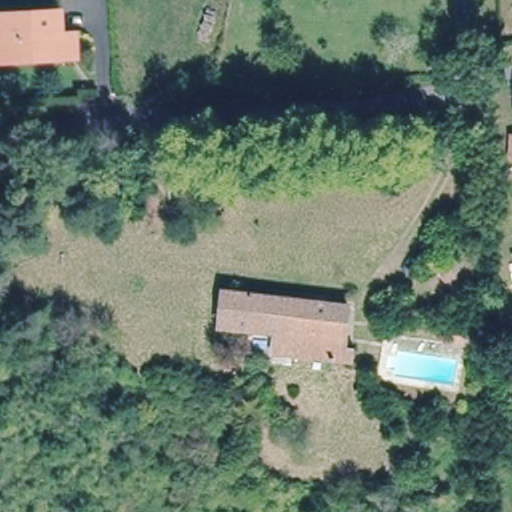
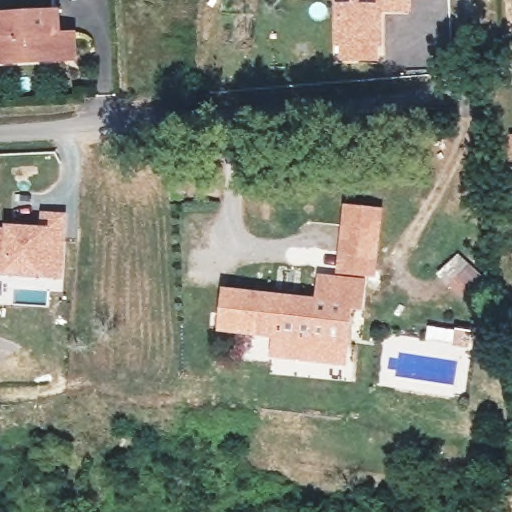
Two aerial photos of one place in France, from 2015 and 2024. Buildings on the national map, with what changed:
unchanged [(413,11),(384,14),(384,46),(335,45),(335,0),(413,0),(413,11)]
unchanged [(0,61),(0,14),(54,12),(55,36),(71,36),(71,59),(56,59),(0,61)]
unchanged [(512,131),(512,154),(511,154),(512,131)]
new [(385,208),(377,279),(337,275),(344,204),(385,208)]
new [(40,227),(41,211),(66,213),(61,279),(46,278),(3,275),(0,274),(0,224),(6,225),(40,227)]
unchanged [(467,267),(448,286),(439,276),(457,257),(467,267)]
new [(366,281),(363,309),(353,308),(348,360),(341,359),(343,345),(347,300),(316,297),(319,273),(366,281)]
unchanged [(276,353),(278,328),(225,323),(228,288),(347,300),(343,345),(341,359),(276,353)]
unchanged [(466,326),(464,340),(452,338),(454,324),(466,326)]

